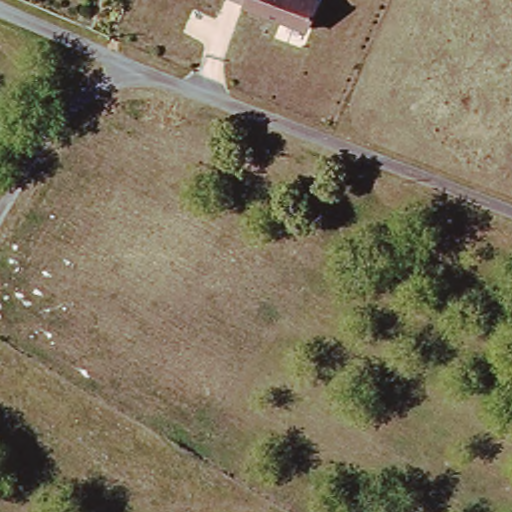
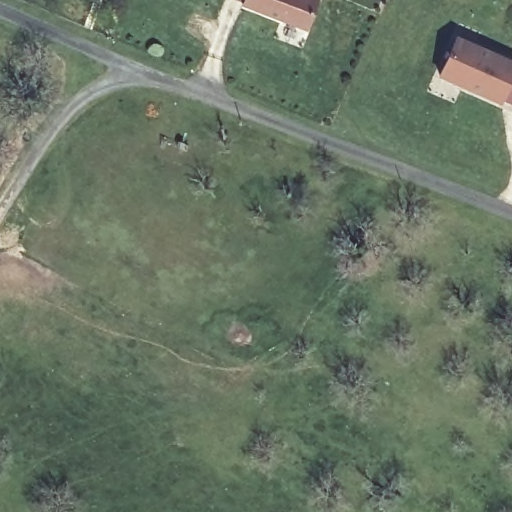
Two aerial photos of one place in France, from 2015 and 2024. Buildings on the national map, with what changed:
unchanged [(308,32),(239,6),(241,1),(237,0),(318,0),(308,32)]
new [(452,40),(512,67),(512,69),(496,103),(435,76),(452,40)]

